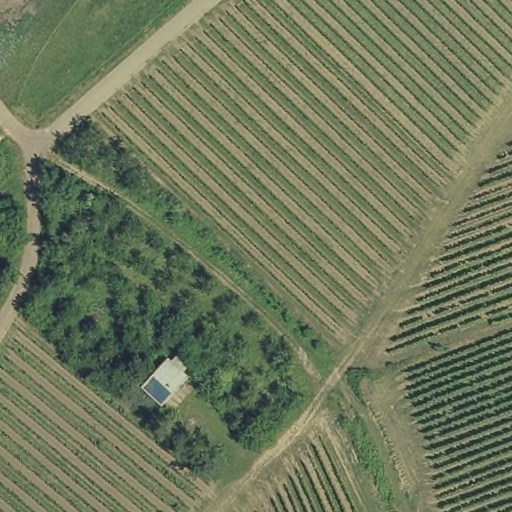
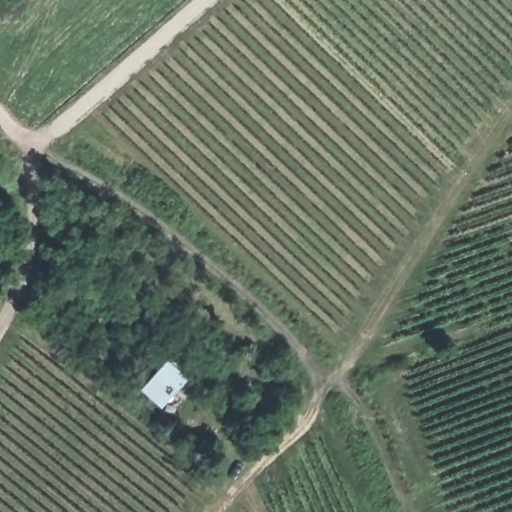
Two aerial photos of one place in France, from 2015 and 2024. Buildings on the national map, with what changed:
unchanged [(139,390),(164,362),(169,367),(174,362),(181,368),(177,373),(183,380),(158,407),(139,390)]

